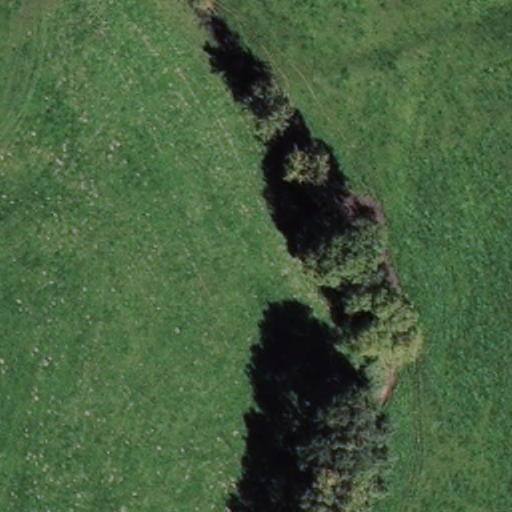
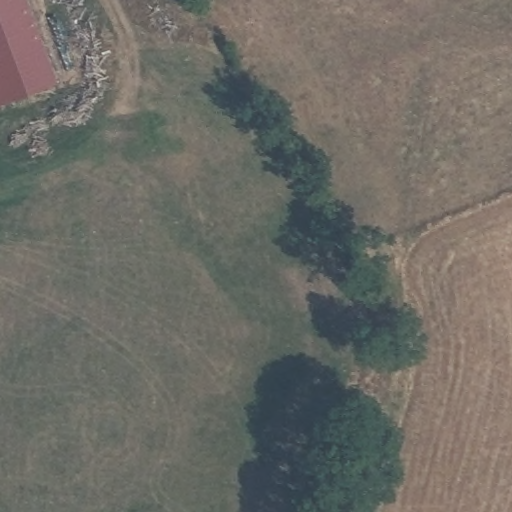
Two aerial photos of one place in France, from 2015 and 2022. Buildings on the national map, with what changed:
new [(57,84),(1,106),(0,103),(0,0),(23,0),(57,84)]

